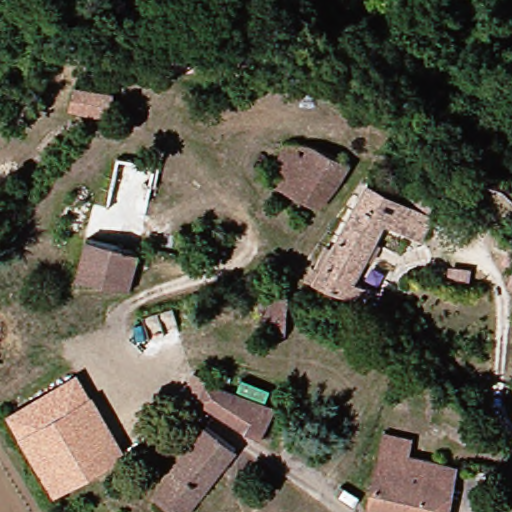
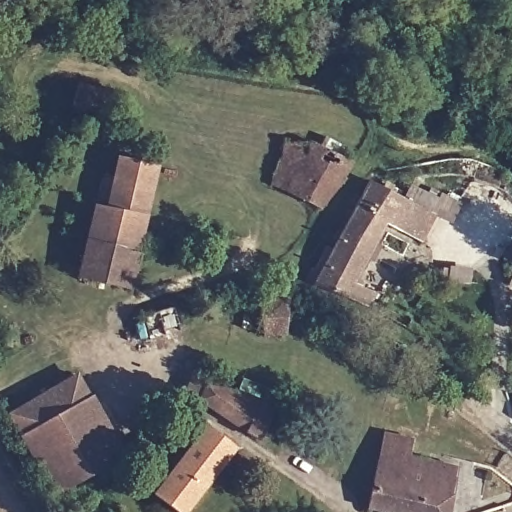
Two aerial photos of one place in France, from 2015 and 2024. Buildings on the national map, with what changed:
unchanged [(62,110),(69,86),(109,97),(100,125),(62,110)]
demolished [(153,220),(112,210),(126,143),(145,149),(141,163),(164,168),(153,220)]
unchanged [(284,146),(313,146),(353,166),(321,217),(277,190),(284,146)]
new [(157,166),(146,217),(129,292),(75,280),(91,206),(104,209),(115,156),(157,166)]
unchanged [(306,281),(315,266),(325,271),(370,180),(438,215),(423,254),(386,236),(365,274),(385,290),(371,305),(306,281)]
new [(511,239),(512,239),(512,266),(501,261),(511,239)]
demolished [(137,263),(132,290),(80,277),(87,240),(140,252),(137,263)]
new [(512,281),(512,287),(510,286),(512,281)]
unchanged [(266,306),(289,303),(293,338),(270,341),(266,306)]
unchanged [(22,429),(10,409),(77,371),(89,392),(22,429)]
unchanged [(213,386),(216,387),(249,397),(281,410),(265,443),(205,404),(213,386)]
unchanged [(125,454),(58,492),(22,429),(89,392),(125,454)]
unchanged [(214,428),(243,451),(196,512),(179,512),(160,498),(214,428)]
unchanged [(512,428),(512,436),(508,433),(512,428)]
unchanged [(456,512),(380,512),(371,510),(375,496),(384,461),(389,437),(417,444),(415,459),(465,470),(456,512)]

